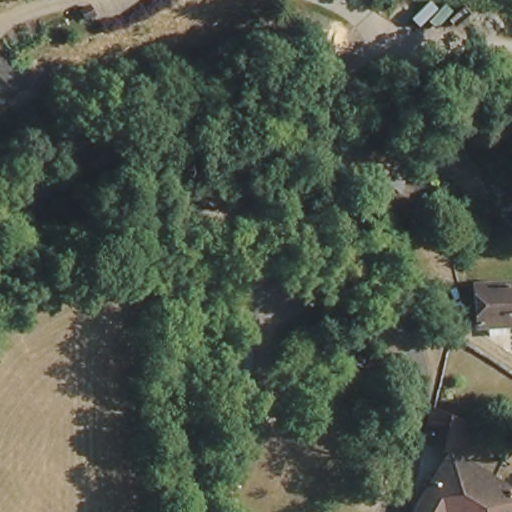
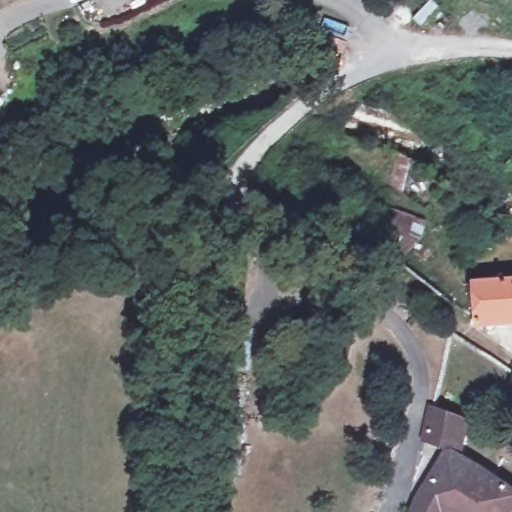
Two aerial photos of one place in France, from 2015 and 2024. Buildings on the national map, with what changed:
unchanged [(512,281),(512,322),(475,324),(477,283),(512,281)]
unchanged [(475,428),(460,452),(422,440),(432,409),(475,428)]
unchanged [(512,498),(512,512),(434,512),(417,499),(450,452),(512,498)]
unchanged [(417,499),(434,512),(412,512),(417,499)]

